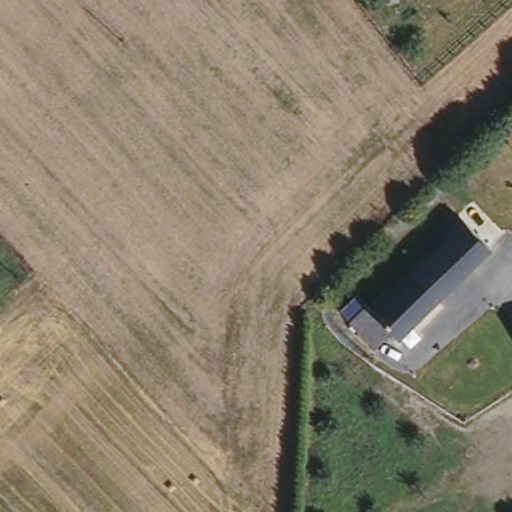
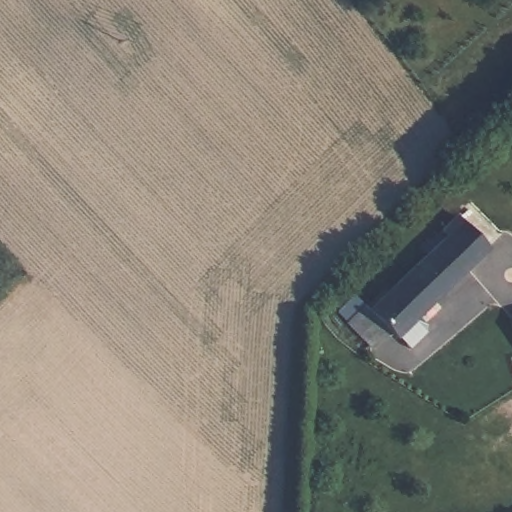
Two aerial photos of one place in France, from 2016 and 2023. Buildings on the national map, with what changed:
unchanged [(444,240),(440,235),(454,221),(484,253),(393,343),(367,315),(444,240)]

